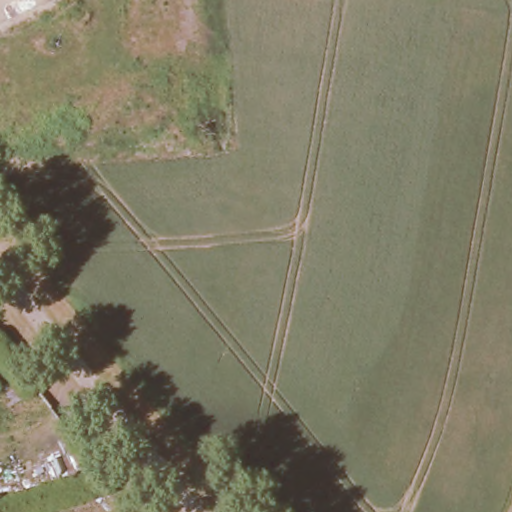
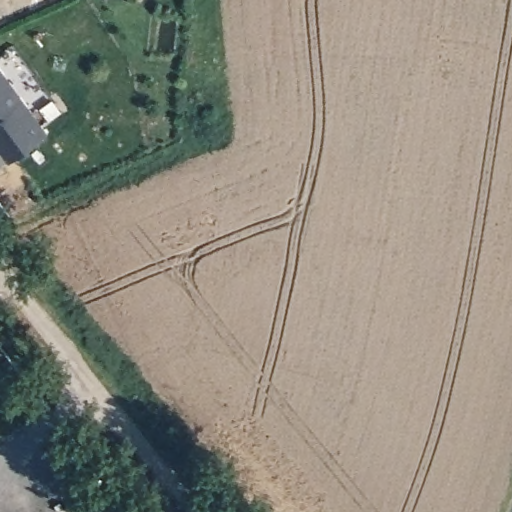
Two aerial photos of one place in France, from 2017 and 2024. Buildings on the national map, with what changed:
new [(12,160),(0,145),(0,72),(47,133),(12,160)]

